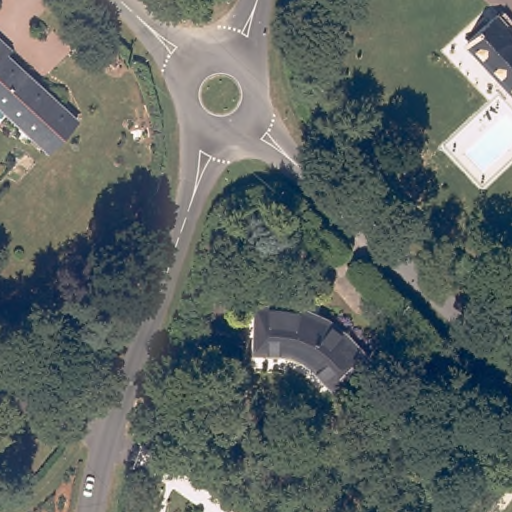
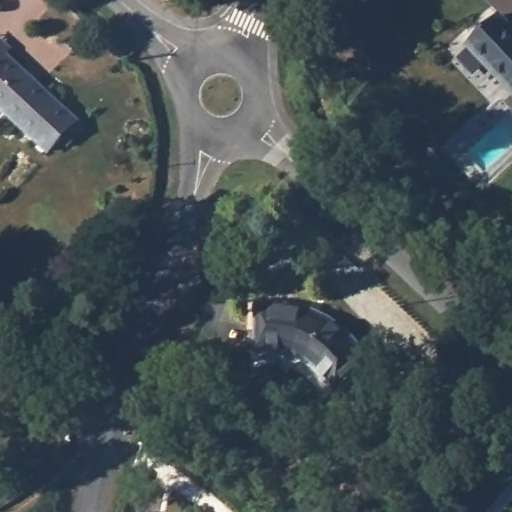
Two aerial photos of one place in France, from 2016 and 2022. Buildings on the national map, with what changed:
unchanged [(512,32),(512,84),(492,62),(469,39),(472,37),(496,14),(512,32)]
unchanged [(0,106),(0,41),(11,51),(6,56),(80,123),(51,154),(0,106)]
unchanged [(256,300),(276,301),(295,302),(307,305),(317,308),(329,315),(340,323),(352,335),(368,352),(333,383),(317,367),(306,356),(299,351),(292,349),(285,348),(255,347),(256,300)]

